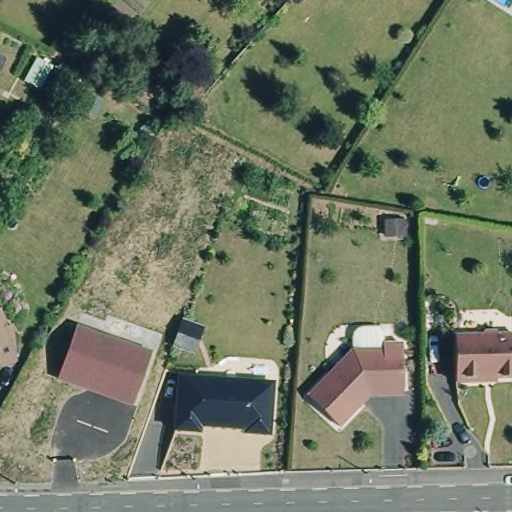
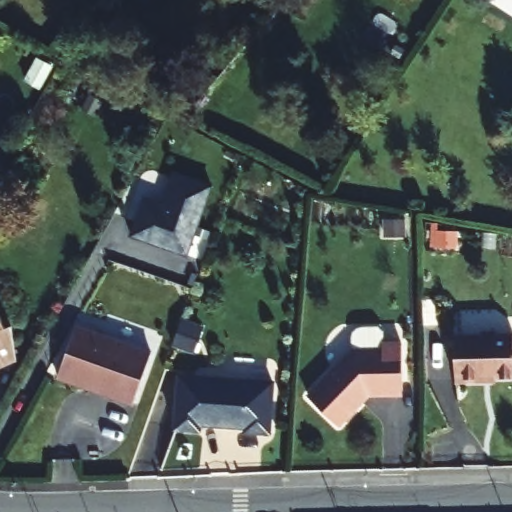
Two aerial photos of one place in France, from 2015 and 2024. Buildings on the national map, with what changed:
new [(214,182),(190,256),(132,237),(145,197),(165,205),(177,172),(214,182)]
unchanged [(404,226),(404,241),(384,241),(384,226),(404,226)]
unchanged [(76,323),(152,351),(135,403),(59,378),(76,323)]
unchanged [(3,332),(7,366),(0,366),(0,332),(3,332)]
unchanged [(399,398),(363,398),(357,405),(359,408),(335,431),(307,401),(352,356),(352,342),(362,332),(377,332),(382,337),(382,350),(399,349),(399,398)]
unchanged [(484,333),(498,332),(504,338),(512,338),(512,380),(487,380),(487,386),(457,385),(457,338),(478,338),(484,333)]
unchanged [(176,372),(276,377),(273,433),(245,435),(245,428),(202,425),(202,430),(175,431),(176,372)]

